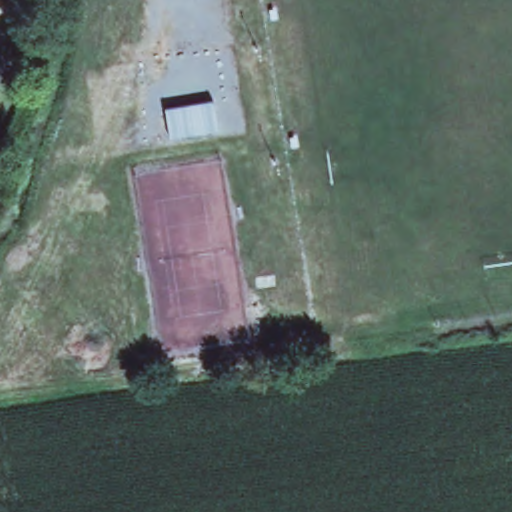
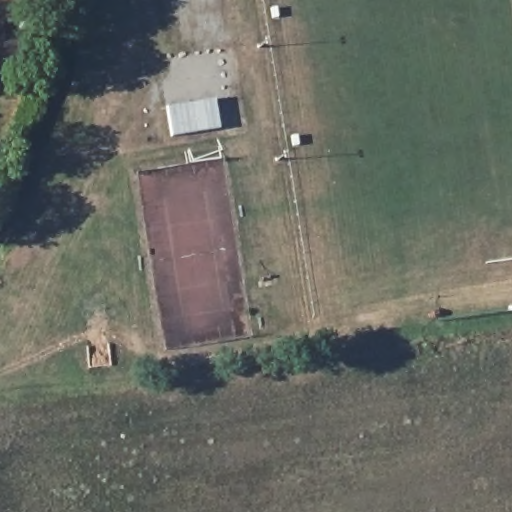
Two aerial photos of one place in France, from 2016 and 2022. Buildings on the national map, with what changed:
unchanged [(167,107),(216,100),(220,129),(171,136),(167,107)]

